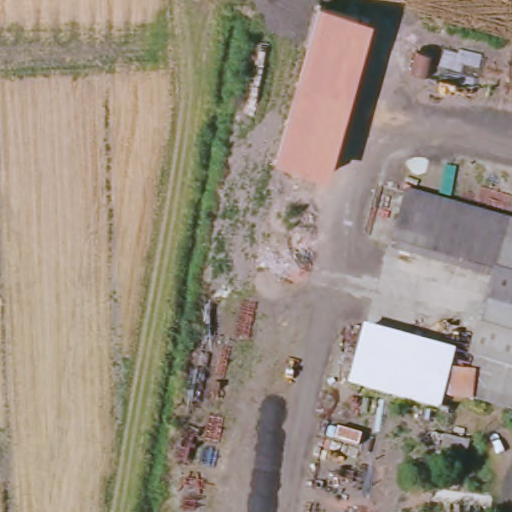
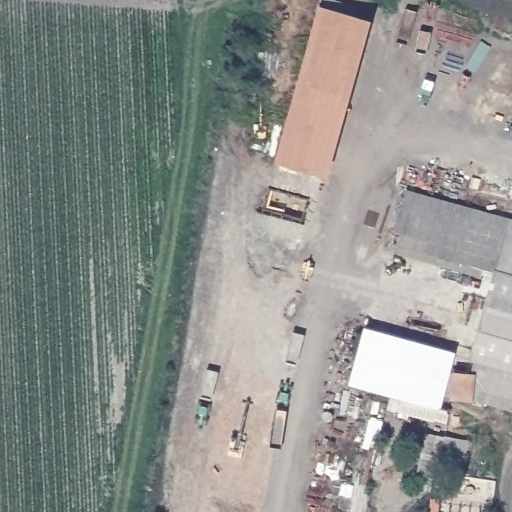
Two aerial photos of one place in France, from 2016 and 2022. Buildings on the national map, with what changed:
unchanged [(329,178),(277,161),(321,7),(373,23),(329,178)]
unchanged [(347,389),(364,329),(455,351),(450,373),(472,373),(476,364),(467,362),(496,274),(390,243),(406,190),(512,221),(512,416),(445,398),(442,414),(347,389)]

